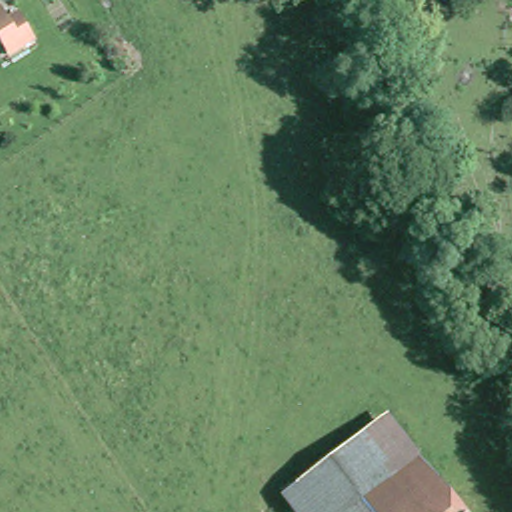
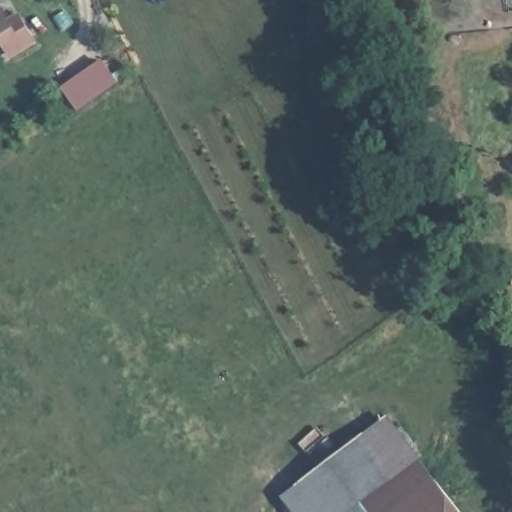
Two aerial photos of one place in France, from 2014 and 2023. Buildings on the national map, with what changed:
unchanged [(5,9),(11,17),(19,29),(25,24),(33,37),(9,54),(0,38),(0,13),(5,9)]
new [(117,84),(76,113),(57,88),(100,59),(117,84)]
unchanged [(395,512),(365,512),(362,507),(355,512),(295,512),(281,492),(379,422),(414,466),(417,463),(434,482),(395,512)]
unchanged [(434,482),(457,512),(395,512),(434,482)]
unchanged [(362,507),(365,512),(355,512),(362,507)]

